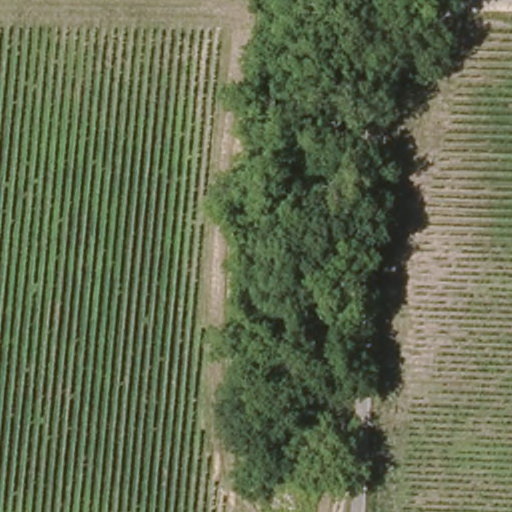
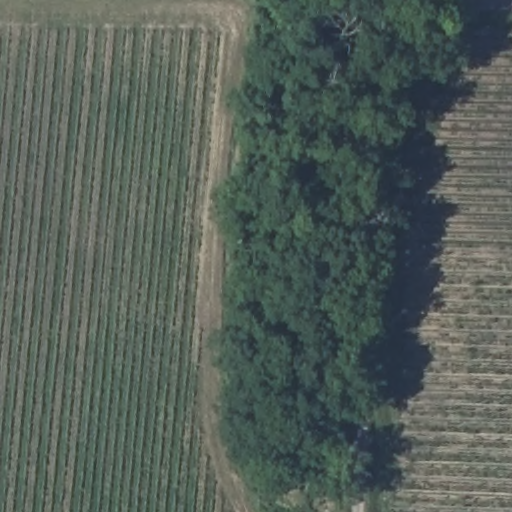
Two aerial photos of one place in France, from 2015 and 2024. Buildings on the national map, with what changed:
[]

